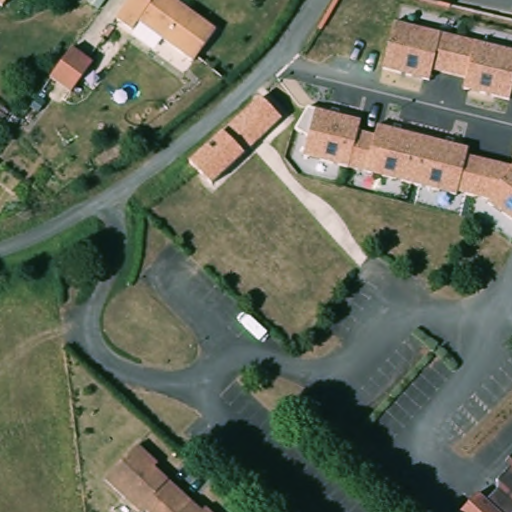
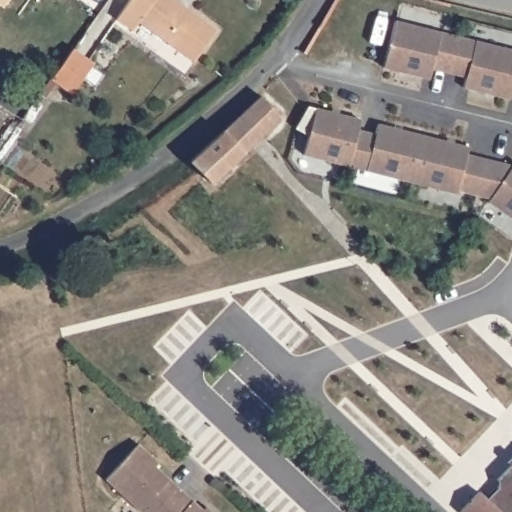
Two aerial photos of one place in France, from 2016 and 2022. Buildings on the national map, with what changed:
unchanged [(1,2),(0,2),(0,0),(2,0),(1,2)]
unchanged [(197,58),(142,18),(136,27),(120,16),(131,0),(183,0),(220,26),(197,58)]
unchanged [(512,93),(511,100),(464,89),(467,77),(434,69),(432,79),(384,67),(394,17),(512,47),(512,93)]
unchanged [(48,84),(53,78),(70,53),(90,68),(69,98),(48,84)]
unchanged [(362,128),(375,132),(376,124),(469,148),(469,155),(512,165),(512,218),(488,198),(302,158),(311,109),(362,121),(362,128)]
unchanged [(256,143),(244,155),(210,185),(182,159),(220,127),(234,119),(256,143)]
unchanged [(210,512),(148,512),(145,509),(142,512),(106,478),(139,444),(151,455),(158,461),(153,466),(175,487),(199,509),(203,506),(209,511),(210,512)]
unchanged [(512,465),(512,474),(508,469),(512,465)]
unchanged [(504,487),(512,479),(512,510),(511,511),(485,486),(493,478),(504,487)]
unchanged [(485,486),(511,511),(510,512),(465,512),(463,510),(485,486)]

